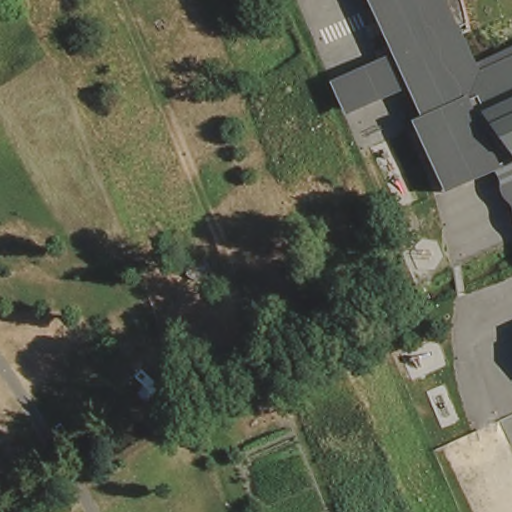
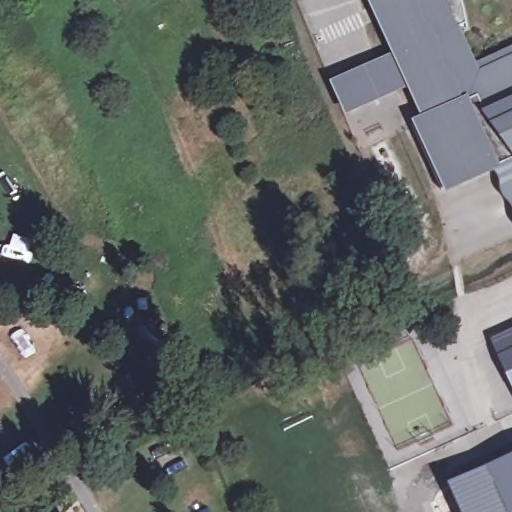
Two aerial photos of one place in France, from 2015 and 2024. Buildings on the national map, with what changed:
unchanged [(503,169),(447,194),(445,195),(415,128),(418,127),(430,121),(413,84),(420,81),(420,79),(412,62),(410,59),(408,54),(401,58),(385,19),(391,16),(386,4),(379,6),(376,0),(465,0),(467,8),(471,26),(461,31),(478,69),(481,76),(512,62),(512,165),(503,169)]
unchanged [(391,68),(410,59),(412,62),(420,79),(400,88),(348,110),(339,90),(391,68)]
unchanged [(503,169),(512,165),(512,188),(503,169)]
new [(492,346),(512,337),(512,387),(492,346)]
new [(512,458),(512,512),(465,512),(452,486),(512,458)]

